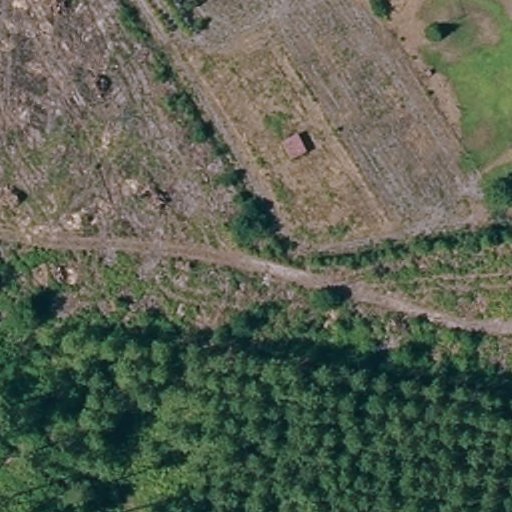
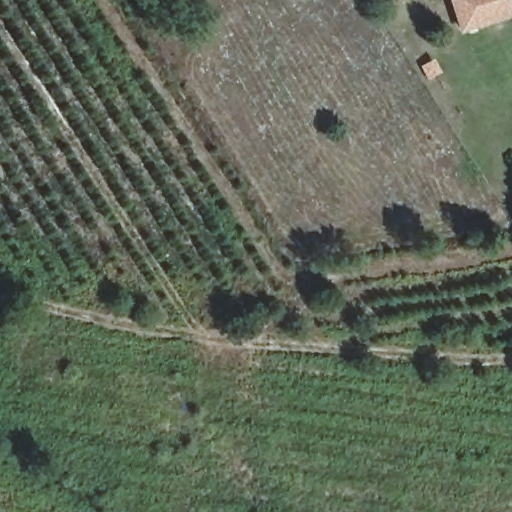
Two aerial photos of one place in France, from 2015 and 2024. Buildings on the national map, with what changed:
new [(512,4),(512,16),(460,32),(450,0),(511,0),(512,4)]

